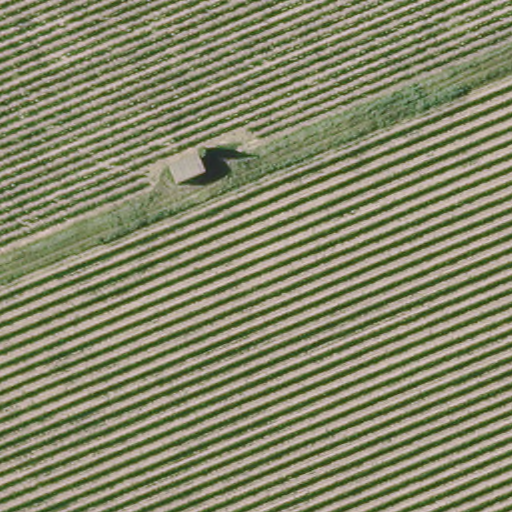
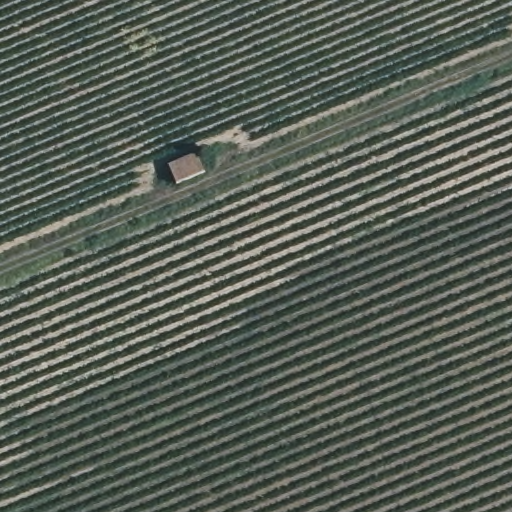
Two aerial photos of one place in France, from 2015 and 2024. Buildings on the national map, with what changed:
unchanged [(192,155),(201,175),(173,185),(165,163),(192,155)]

